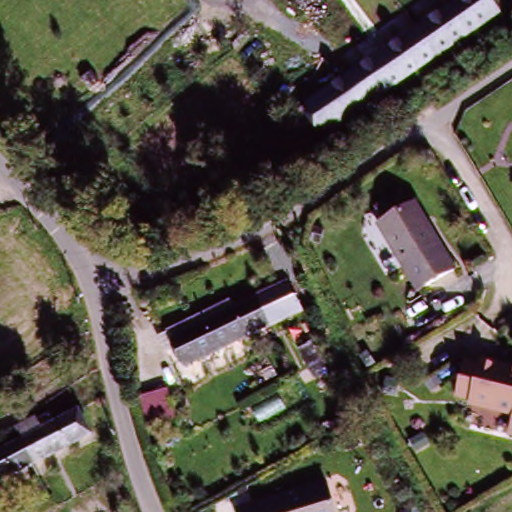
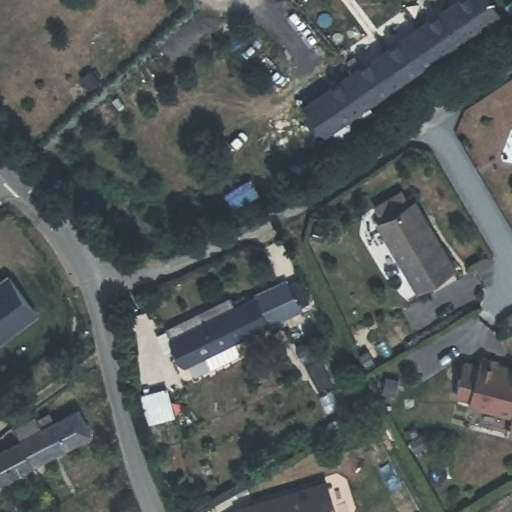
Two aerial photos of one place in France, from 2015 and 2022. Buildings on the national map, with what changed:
unchanged [(316,104),(463,0),(490,0),(499,14),(335,131),(325,117),(307,130),(298,117),(316,104)]
unchanged [(404,200),(412,214),(418,209),(443,248),(459,274),(425,295),(409,270),(383,235),(389,230),(381,217),(404,200)]
new [(0,345),(0,281),(8,275),(38,315),(0,345)]
unchanged [(155,335),(166,330),(230,299),(235,309),(288,283),(303,316),(185,374),(173,346),(162,351),(155,335)]
unchanged [(466,357),(480,359),(482,352),(501,357),(500,364),(512,366),(512,413),(472,404),(473,396),(458,393),(466,357)]
unchanged [(20,444),(13,431),(40,414),(44,421),(60,412),(64,419),(88,407),(101,432),(34,470),(20,444)]
unchanged [(0,490),(0,456),(20,444),(34,470),(0,490)]
unchanged [(324,481),(335,512),(238,512),(238,511),(324,481)]

